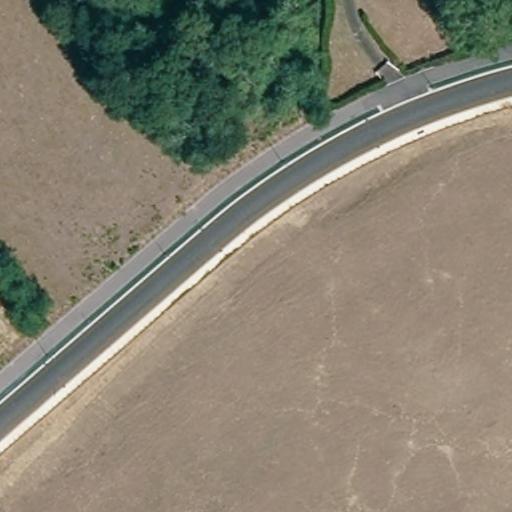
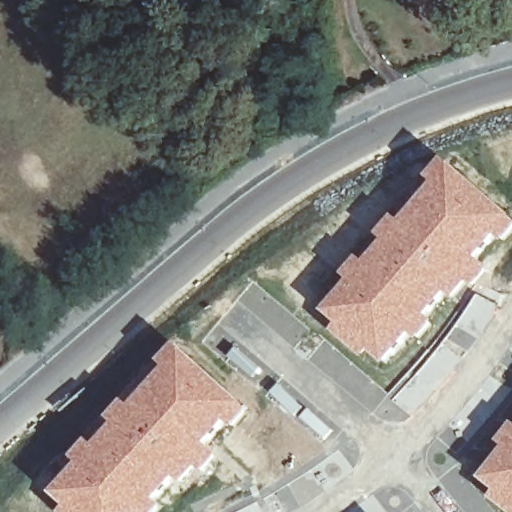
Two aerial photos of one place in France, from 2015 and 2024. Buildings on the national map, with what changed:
new [(348,282),(342,276),(360,257),(365,261),(382,242),(377,237),(396,216),(401,220),(432,185),(426,179),(447,159),(502,206),(512,216),(512,236),(502,247),(498,244),(494,248),(495,249),(484,258),(491,265),(471,287),(468,284),(452,300),(447,297),(428,316),(435,322),(415,342),(411,337),(382,366),(370,354),(363,360),(333,332),(337,326),(323,313),(348,282)]
new [(72,459),(90,440),(95,444),(112,425),(108,420),(126,401),(131,406),(164,369),(159,364),(179,345),(251,411),(211,446),(218,454),(182,486),(178,482),(158,500),(165,507),(160,512),(63,512),(66,509),(52,495),(77,465),(72,459)]
new [(512,430),(512,512),(505,512),(490,498),(494,492),(481,481),(499,453),(512,430)]

